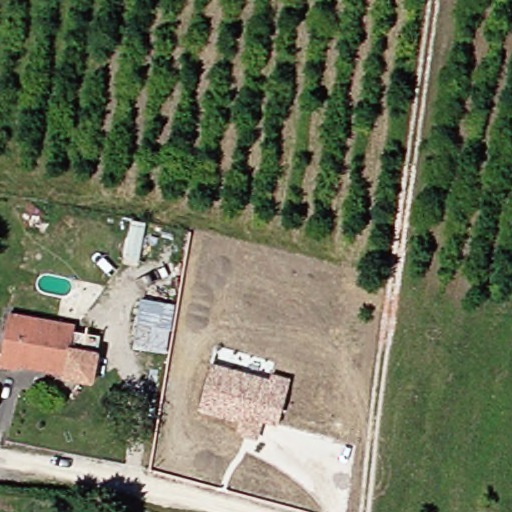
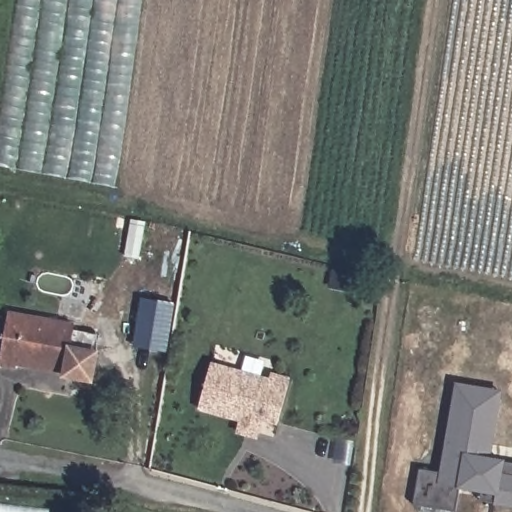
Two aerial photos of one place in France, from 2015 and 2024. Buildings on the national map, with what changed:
new [(0,166),(0,123),(18,0),(142,0),(116,188),(0,166)]
new [(130,220),(146,223),(139,259),(124,257),(130,220)]
new [(168,353),(131,348),(139,297),(175,303),(168,353)]
demolished [(107,341),(105,349),(87,346),(90,318),(130,324),(133,304),(165,309),(159,349),(107,341)]
unchanged [(58,372),(7,364),(6,369),(0,368),(0,324),(2,313),(67,325),(58,372)]
new [(98,352),(94,378),(58,372),(64,345),(66,330),(98,335),(98,352)]
unchanged [(233,435),(237,422),(197,411),(211,362),(269,379),(271,372),(290,379),(275,427),(261,422),(256,440),(233,435)]
new [(512,462),(512,508),(481,503),(483,493),(459,489),(456,512),(453,512),(414,506),(419,470),(440,473),(454,384),(501,393),(491,458),(512,462)]

